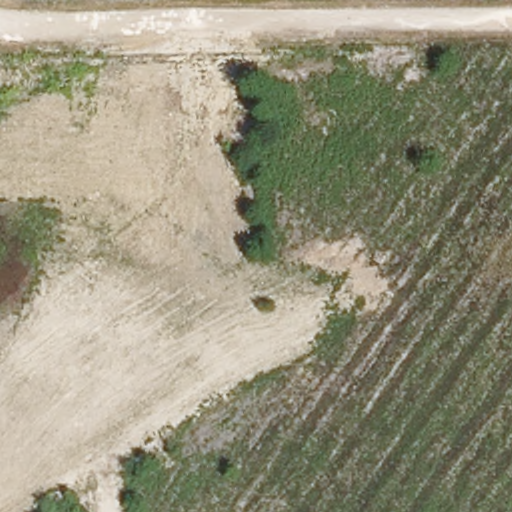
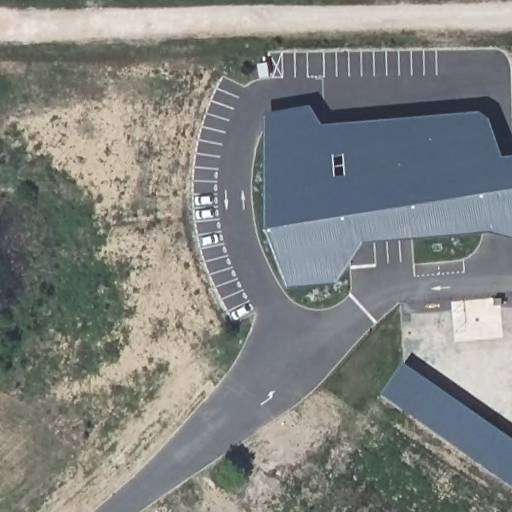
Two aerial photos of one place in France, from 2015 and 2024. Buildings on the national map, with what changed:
new [(313,105),(323,124),(481,111),(490,117),(503,155),(512,154),(512,237),(492,230),(364,242),(341,282),(291,286),(268,227),(266,111),(313,105)]
new [(512,442),(512,489),(384,400),(406,367),(512,442)]

